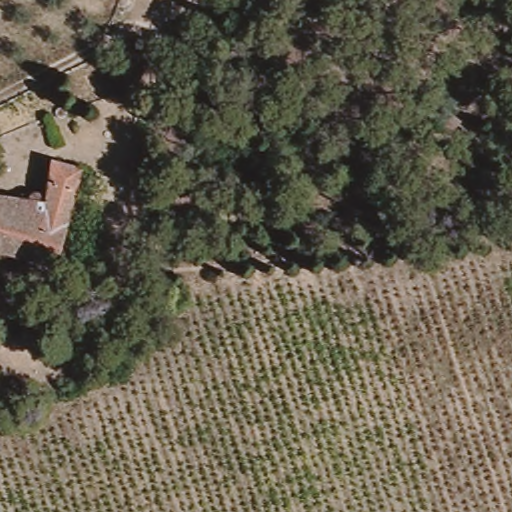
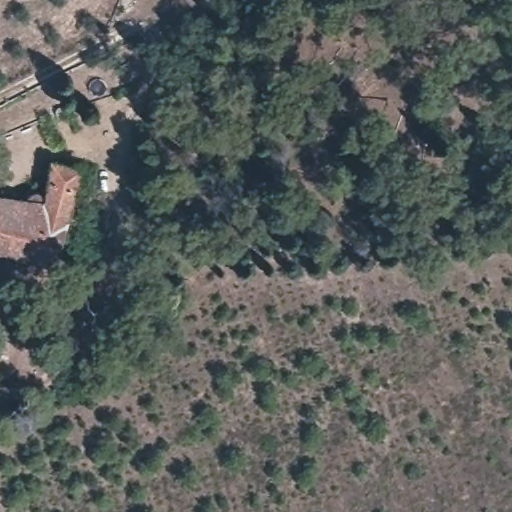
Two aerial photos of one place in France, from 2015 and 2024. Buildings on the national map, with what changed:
unchanged [(45,266),(0,253),(0,201),(18,203),(22,197),(29,195),(35,199),(37,205),(39,205),(47,163),(89,178),(83,197),(70,193),(45,266)]

